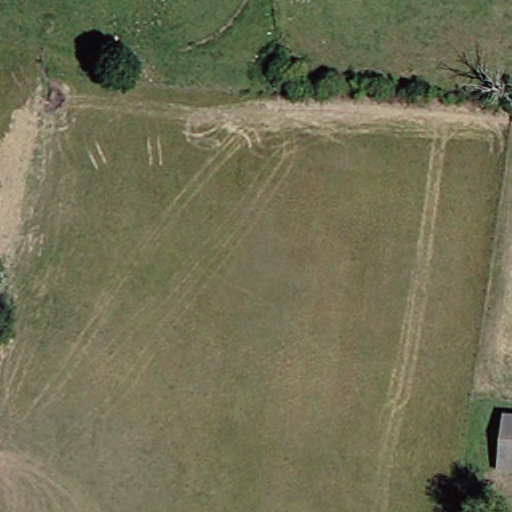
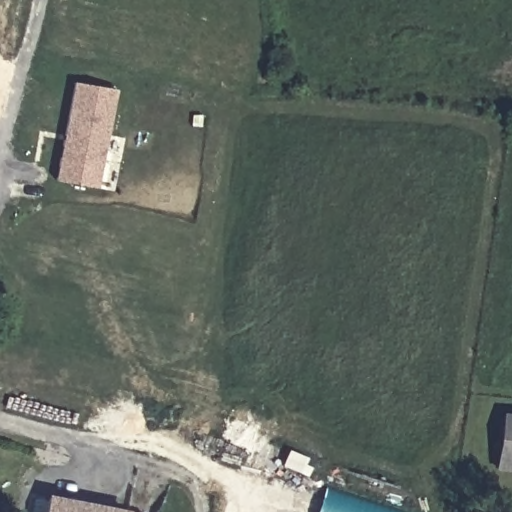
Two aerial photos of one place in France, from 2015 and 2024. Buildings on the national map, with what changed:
new [(80,83),(122,90),(104,187),(62,180),(80,83)]
unchanged [(494,418),(512,419),(512,475),(489,473),(494,418)]
new [(325,488),(393,512),(317,512),(325,488)]
new [(48,496),(131,512),(45,512),(48,496)]

